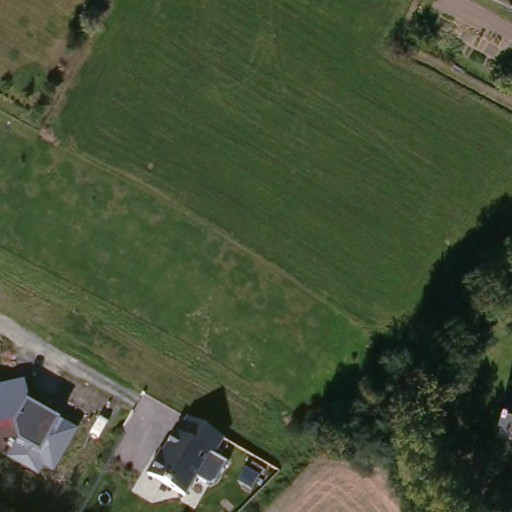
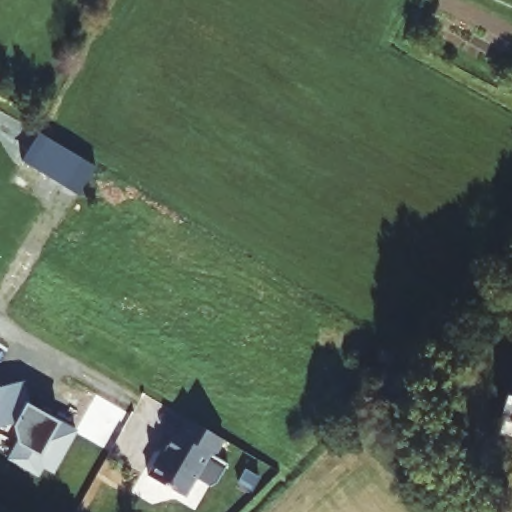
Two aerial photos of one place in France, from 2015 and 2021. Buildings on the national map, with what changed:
new [(78,193),(64,185),(20,160),(37,131),(80,157),(95,165),(78,193)]
unchanged [(15,425),(0,427),(0,386),(24,381),(29,402),(59,420),(79,430),(54,475),(44,469),(40,477),(6,458),(18,442),(15,425)]
unchanged [(503,418),(512,384),(512,421),(503,418)]
unchanged [(227,439),(216,457),(225,466),(217,484),(199,477),(187,492),(151,468),(190,415),(227,439)]

